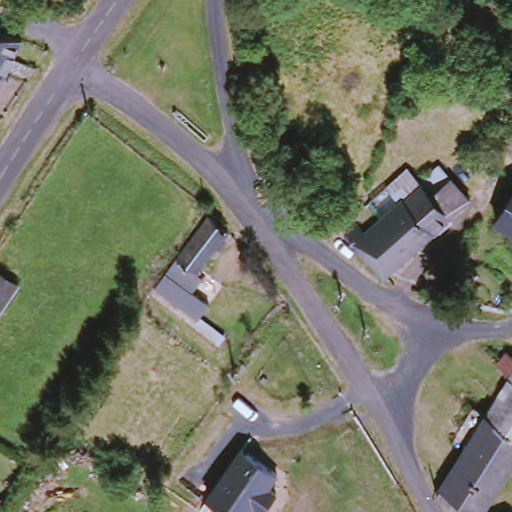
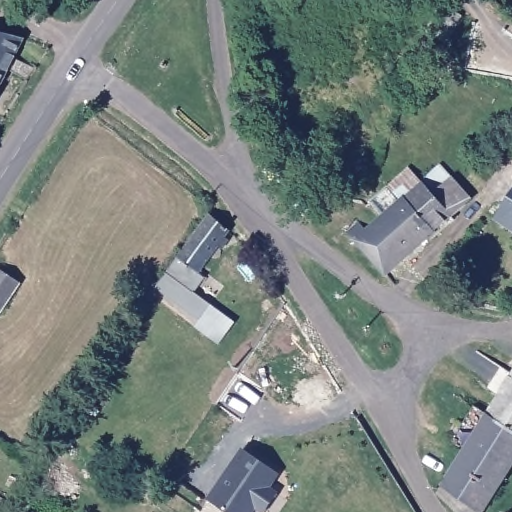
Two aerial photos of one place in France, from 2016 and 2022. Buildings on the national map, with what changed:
unchanged [(444,3),(460,11),(447,41),(428,31),(439,7),(444,3)]
unchanged [(0,76),(0,37),(25,45),(0,76)]
unchanged [(342,230),(353,220),(363,227),(380,212),(367,195),(378,184),(407,160),(420,176),(437,161),(465,195),(445,212),(448,216),(427,235),(423,232),(420,234),(378,271),(342,230)]
unchanged [(512,233),(488,217),(512,178),(512,233)]
unchanged [(213,342),(186,321),(148,291),(204,211),(223,226),(192,268),(196,272),(185,287),(201,300),(195,309),(222,332),(213,342)]
unchanged [(17,285),(0,310),(0,273),(17,285)]
unchanged [(495,372),(508,351),(512,353),(512,429),(482,410),(503,377),(495,372)]
unchanged [(433,488),(461,443),(448,435),(470,401),(482,410),(512,429),(512,453),(475,512),(457,512),(433,488)]
unchanged [(243,451),(282,477),(273,491),(280,496),(270,512),(257,512),(223,512),(207,501),(243,451)]
unchanged [(498,511),(500,512),(497,512),(498,511)]

